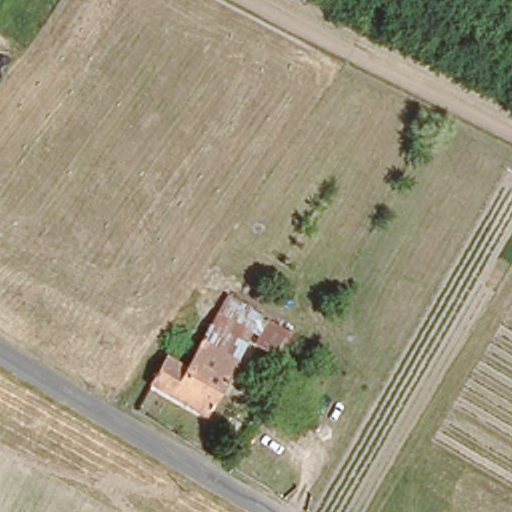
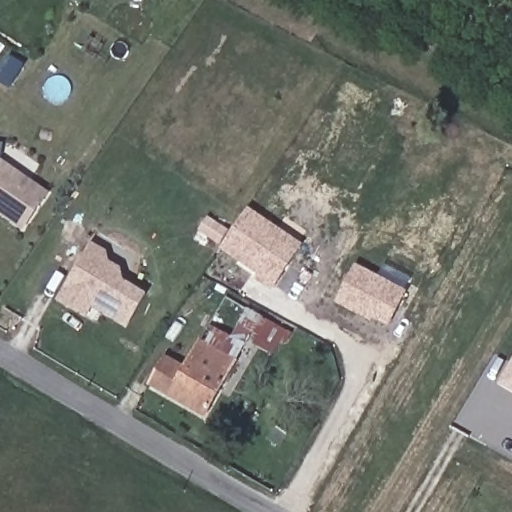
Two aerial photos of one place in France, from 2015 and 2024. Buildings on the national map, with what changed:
new [(23,231),(0,214),(0,158),(2,158),(51,192),(23,231)]
new [(206,218),(230,234),(248,207),(304,245),(277,284),(198,231),(206,218)]
new [(147,294),(127,328),(91,307),(86,317),(57,301),(91,243),(107,252),(109,261),(122,268),(124,280),(147,294)]
new [(408,291),(389,329),(336,301),(355,264),(408,291)]
unchanged [(217,347),(201,338),(184,329),(206,290),(240,309),(217,347)]
unchanged [(153,385),(166,360),(184,370),(201,338),(217,347),(240,309),(288,337),(276,359),(255,347),(259,339),(252,336),(208,416),(153,385)]
new [(512,388),(502,382),(512,365),(512,388)]

